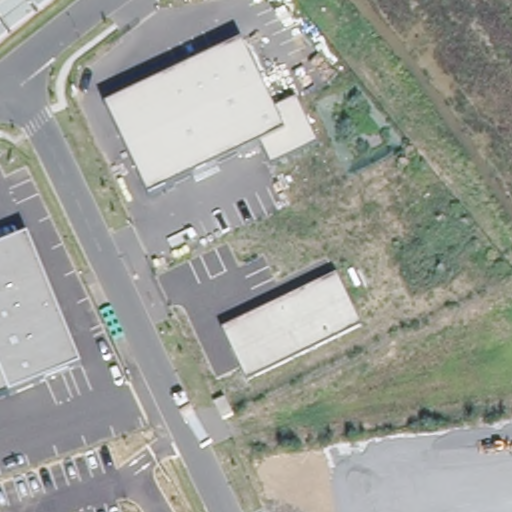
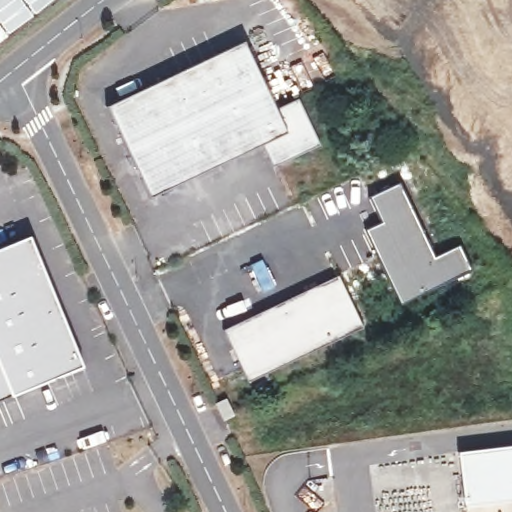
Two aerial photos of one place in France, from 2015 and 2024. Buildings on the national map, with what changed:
unchanged [(274,107),(297,97),(319,144),(272,166),(261,143),(149,196),(105,105),(241,40),(274,107)]
new [(434,257),(460,245),(469,268),(402,300),(366,229),(384,220),(373,195),(398,183),(434,257)]
unchanged [(83,367),(0,400),(0,247),(29,235),(83,367)]
unchanged [(362,326),(248,381),(223,328),(338,274),(362,326)]
new [(466,502),(459,452),(512,446),(512,498),(466,502)]

